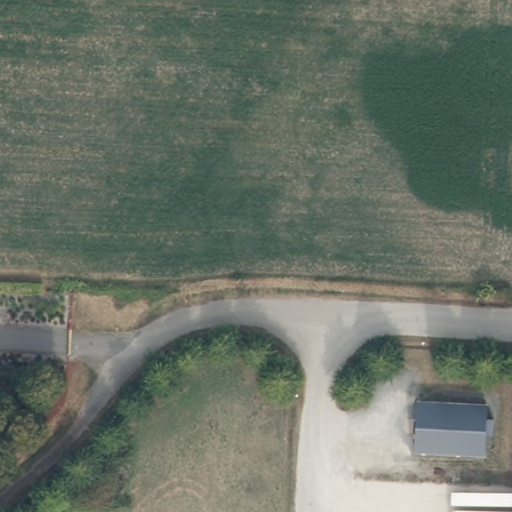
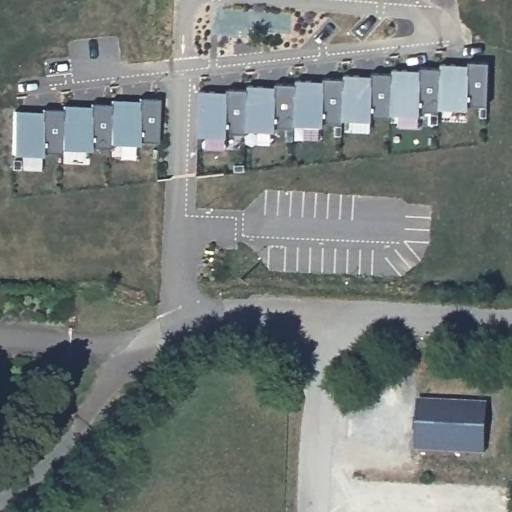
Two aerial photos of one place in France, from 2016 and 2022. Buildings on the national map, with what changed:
new [(440,66),(440,62),(456,63),(455,68),(467,69),(468,60),(488,61),(486,104),(467,103),(467,106),(438,105),(440,66)]
new [(392,72),(392,68),(408,69),(407,74),(419,75),(419,66),(440,66),(438,105),(438,110),(419,109),(419,112),(390,110),(392,72)]
new [(343,77),(344,74),(359,74),(359,80),(371,80),(371,71),(392,72),(390,110),(390,116),(371,115),(371,117),(342,116),(343,77)]
new [(295,83),(296,80),(311,80),(311,85),(323,86),(323,77),(343,77),(342,116),(342,121),(322,120),(322,122),(294,122),(295,83)]
new [(247,89),(247,85),(263,86),(263,91),(275,91),(275,82),(295,83),(294,122),(294,127),(274,126),(274,129),(246,127),(247,89)]
new [(199,91),(215,92),(215,97),(226,97),(227,88),(247,89),(246,127),(246,132),(226,132),(226,134),(198,133),(199,91)]
new [(110,105),(111,101),(126,102),(126,107),(138,107),(138,99),(158,99),(157,142),(137,142),(137,144),(109,143),(110,105)]
new [(62,111),(62,107),(78,107),(78,112),(90,112),(90,104),(110,105),(109,143),(109,148),(89,147),(89,150),(61,149),(62,111)]
new [(14,112),(30,112),(30,118),(41,118),(42,110),(62,111),(61,149),(61,154),(41,153),(41,156),(13,155),(14,112)]
unchanged [(485,455),(417,452),(419,403),(486,405),(485,455)]

